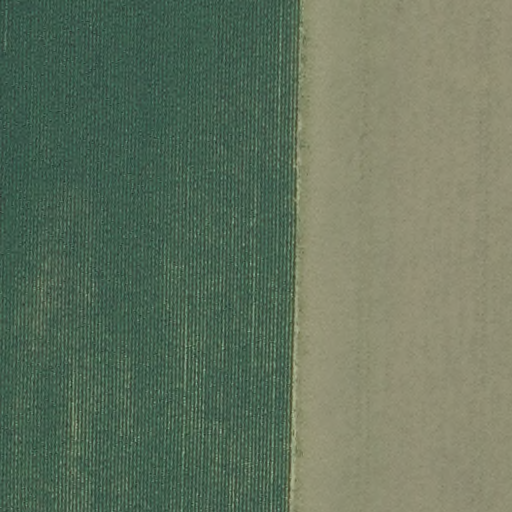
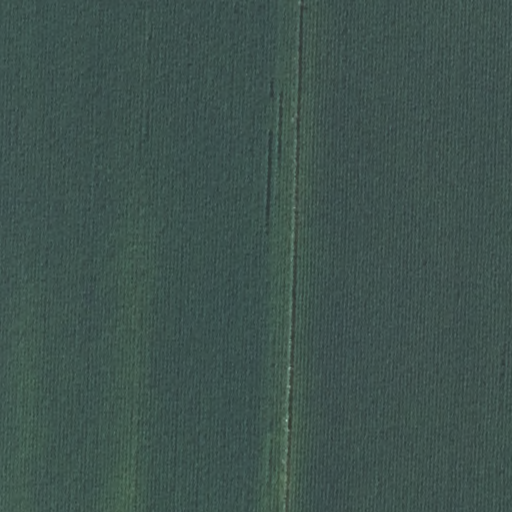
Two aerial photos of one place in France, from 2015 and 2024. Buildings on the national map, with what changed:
[]

